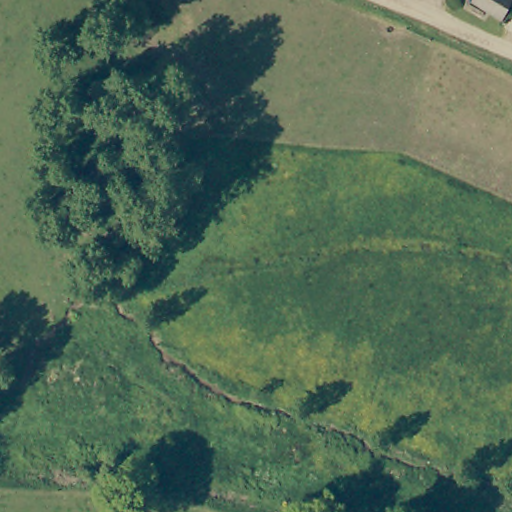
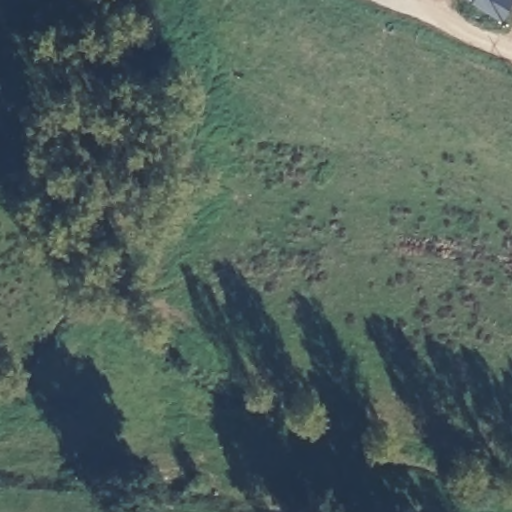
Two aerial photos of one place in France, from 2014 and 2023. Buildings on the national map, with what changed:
unchanged [(472,2),(473,0),(512,0),(501,19),(472,2)]

